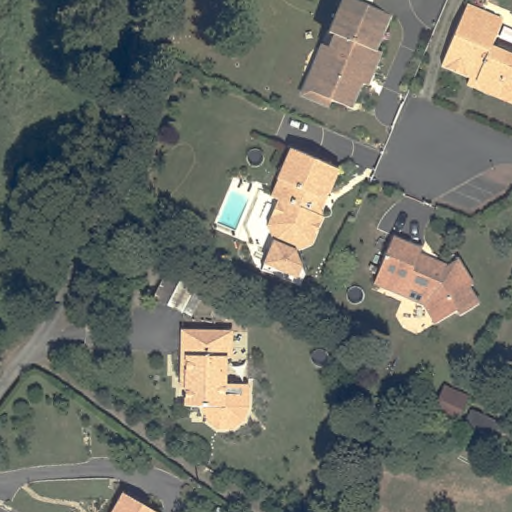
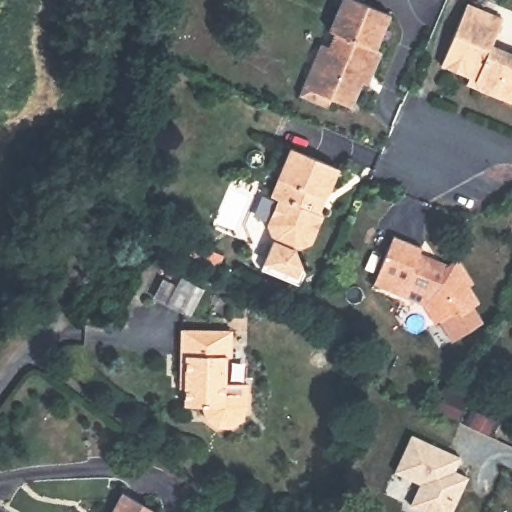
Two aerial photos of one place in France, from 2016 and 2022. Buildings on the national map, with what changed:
unchanged [(364,82),(354,106),(332,97),(329,104),(300,92),(321,43),(329,46),(335,32),(331,30),(344,0),(356,0),(392,15),(378,50),(382,52),(374,73),(369,84),(364,82)]
unchanged [(482,91),(478,81),(443,66),(469,4),(505,19),(494,46),(512,53),(512,103),(492,95),(482,91)]
unchanged [(278,205),(270,201),(292,153),(339,173),(329,200),(321,201),(318,209),(324,220),(313,248),(297,255),(275,246),(268,228),(278,205)]
unchanged [(394,236),(424,249),(420,258),(444,268),(457,260),(472,285),(469,287),(479,303),(459,314),(457,310),(434,324),(423,307),(387,291),(374,286),(378,277),(394,236)]
unchanged [(210,404),(193,404),(193,373),(189,373),(189,330),(240,330),(240,357),(234,357),(234,383),(255,383),(255,405),(249,417),(238,426),(224,426),(212,417),(210,404)]
new [(459,455),(453,468),(467,475),(449,512),(429,512),(409,502),(419,481),(393,469),(410,432),(459,455)]
unchanged [(155,512),(112,512),(124,492),(155,512)]

